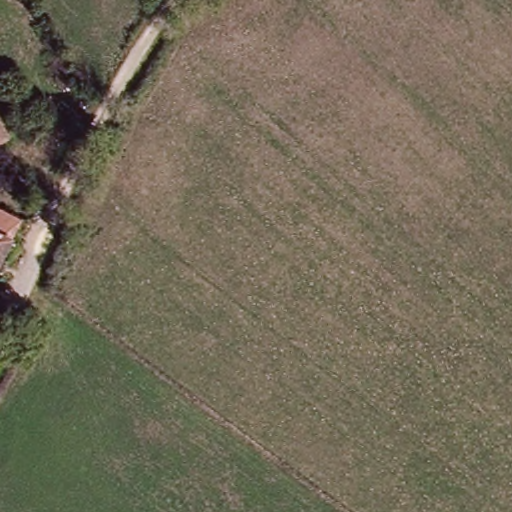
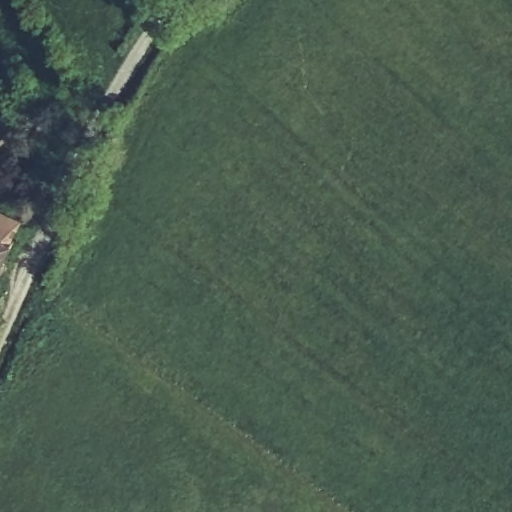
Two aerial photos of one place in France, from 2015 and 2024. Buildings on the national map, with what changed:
unchanged [(0,140),(0,119),(10,134),(0,140)]
unchanged [(0,262),(0,208),(22,220),(0,262)]

